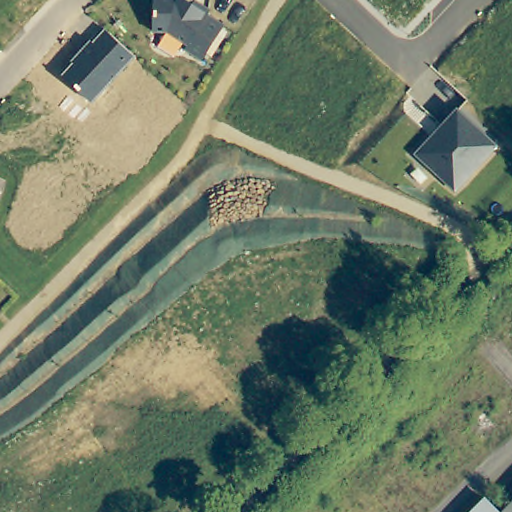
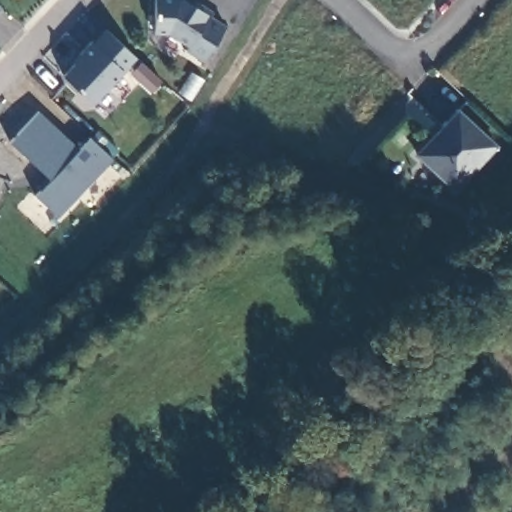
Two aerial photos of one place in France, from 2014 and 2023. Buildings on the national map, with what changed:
unchanged [(154,0),(184,0),(192,6),(195,1),(211,11),(208,16),(225,26),(203,61),(185,50),(188,46),(167,32),(153,32),(154,0)]
unchanged [(92,102),(62,75),(73,63),(71,62),(91,40),(93,42),(105,30),(136,57),(92,102)]
unchanged [(456,194),(413,155),(456,108),(500,147),(456,194)]
new [(37,110),(76,145),(85,134),(111,157),(56,214),(35,193),(50,177),(10,140),(37,110)]

